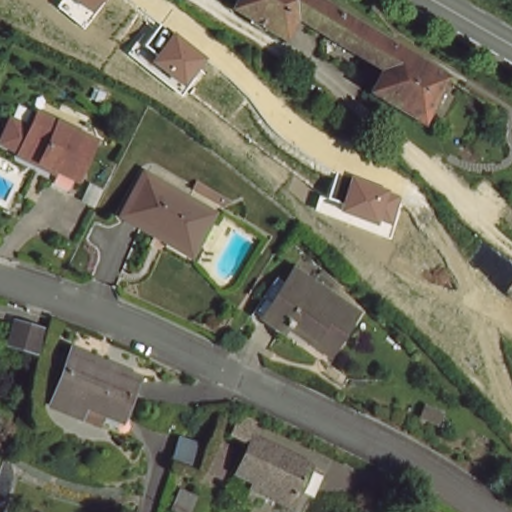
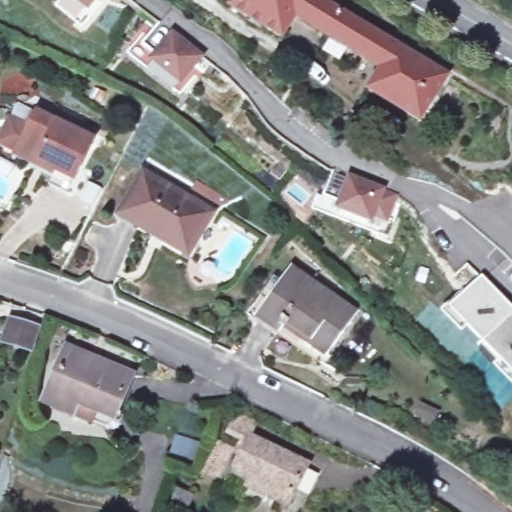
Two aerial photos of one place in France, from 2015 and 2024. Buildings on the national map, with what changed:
unchanged [(72,0),(100,0),(89,14),(72,0)]
unchanged [(289,10),(283,20),(275,33),(225,1),(226,0),(295,0),(289,10)]
unchanged [(380,60),(376,65),(289,10),(295,0),(325,0),(326,1),(388,39),(392,41),(380,60)]
unchanged [(203,60),(182,85),(150,61),(170,35),(203,60)]
unchanged [(443,72),(415,117),(363,86),(371,73),(376,65),(380,60),(392,41),(443,72)]
unchanged [(64,187),(45,179),(53,165),(15,145),(0,138),(0,128),(8,113),(27,122),(34,107),(90,136),(64,187)]
unchanged [(205,209),(184,245),(153,227),(150,231),(116,211),(138,170),(205,209)]
unchanged [(389,223),(373,217),(370,224),(335,211),(338,202),(323,196),(331,173),(397,199),(389,223)]
unchanged [(271,326),(253,313),(286,265),(348,310),(318,354),(313,362),(268,329),(271,326)]
new [(448,308),(481,276),(512,308),(512,374),(448,308)]
unchanged [(30,352),(0,345),(0,328),(5,312),(36,322),(30,352)]
unchanged [(70,413),(45,404),(65,349),(130,373),(115,410),(110,427),(70,413)]
unchanged [(300,458),(281,506),(264,500),(267,493),(229,474),(218,485),(200,477),(212,440),(232,447),(236,437),(221,430),(230,399),(256,407),(252,433),(300,458)]

